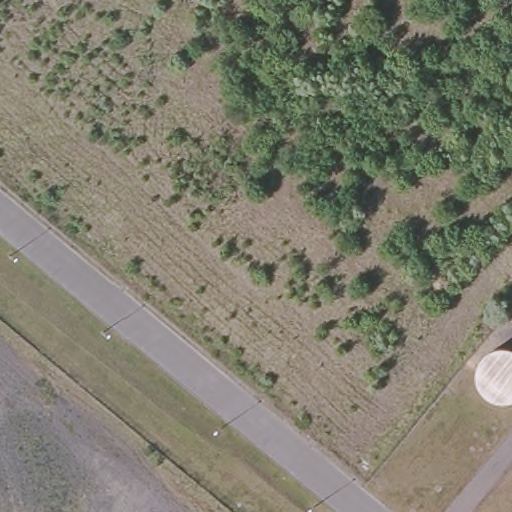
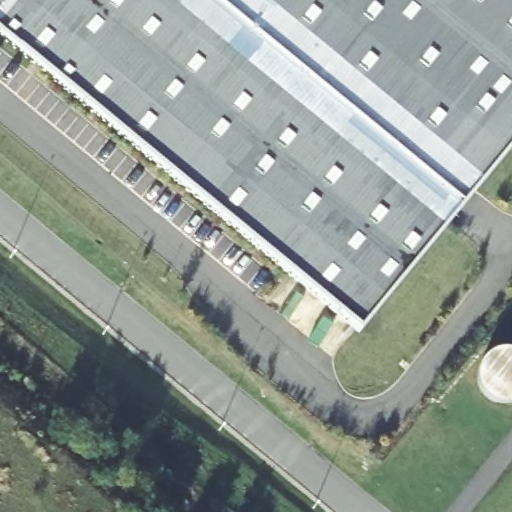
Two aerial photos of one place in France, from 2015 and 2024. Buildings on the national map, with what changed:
new [(350,324),(0,37),(0,0),(512,0),(512,128),(350,324)]
unchanged [(503,349),(505,349),(507,349),(509,349),(510,349),(512,349),(512,402),(510,403),(508,403),(506,403),(505,403),(502,403),(500,403),(499,402),(497,402),(495,401),(494,400),(492,399),(490,398),(489,397),(487,396),(486,395),(485,393),(484,392),(482,390),(482,388),(480,387),(480,385),(480,383),(479,381),(479,380),(479,378),(479,374),(479,372),(479,370),(480,368),(480,366),(481,365),(482,363),(482,361),(484,360),(485,358),(487,357),(487,356),(489,355),(490,353),(492,352),(494,352),(495,351),(497,350),(499,350),(501,349),(503,349)]

